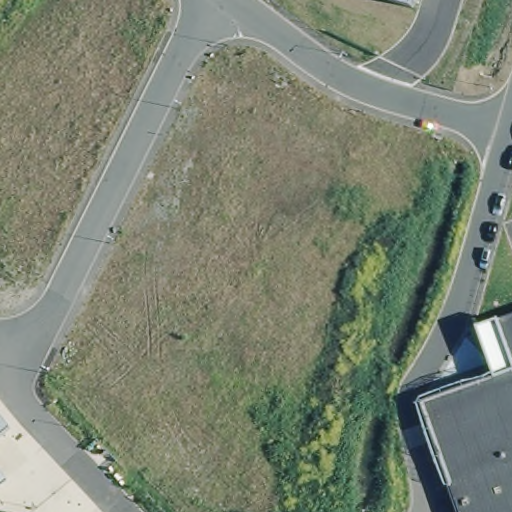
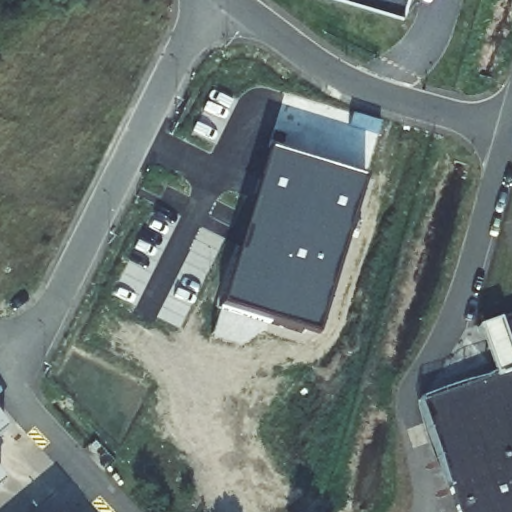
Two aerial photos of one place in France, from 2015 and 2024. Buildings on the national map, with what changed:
unchanged [(412,7),(388,0),(415,0),(412,7)]
new [(316,337),(217,309),(266,151),(362,180),(316,337)]
unchanged [(512,317),(512,361),(498,321),(512,317)]
unchanged [(512,371),(512,512),(457,512),(420,403),(512,371)]
unchanged [(0,435),(0,423),(5,430),(0,435)]
unchanged [(2,482),(0,485),(0,480),(2,482)]

